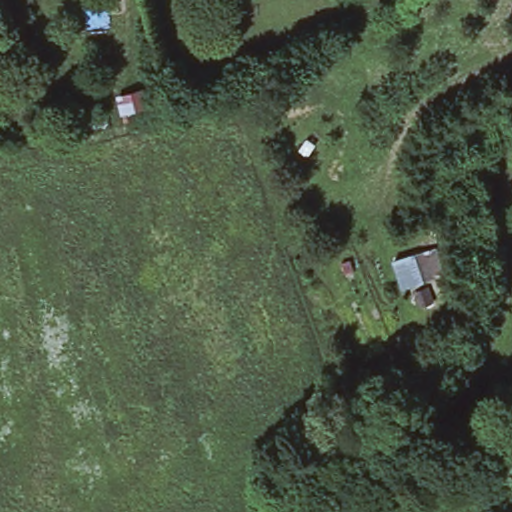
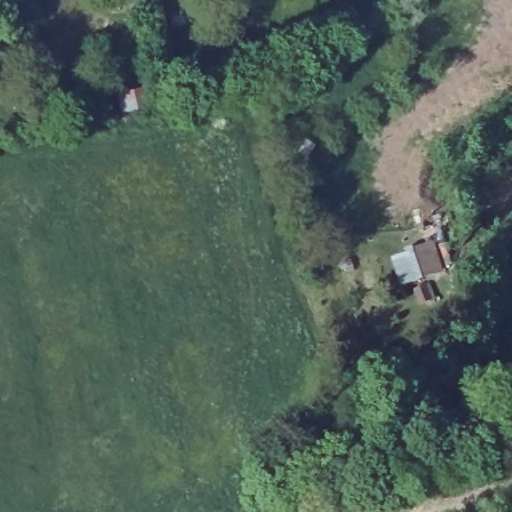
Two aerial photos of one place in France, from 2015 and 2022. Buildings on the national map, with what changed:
unchanged [(87,112),(72,117),(69,106),(84,101),(87,112)]
unchanged [(506,247),(508,296),(489,297),(486,248),(506,247)]
unchanged [(404,285),(395,257),(414,251),(423,279),(404,285)]

